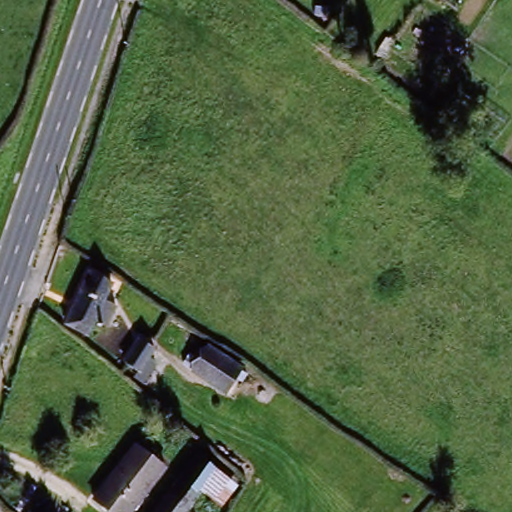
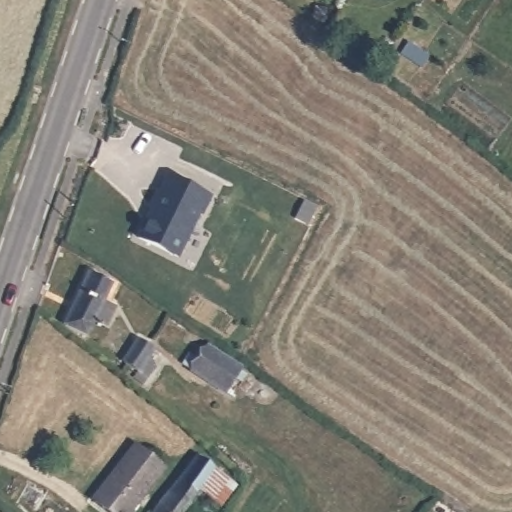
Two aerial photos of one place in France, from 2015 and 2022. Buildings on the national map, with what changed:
new [(202,195),(194,210),(192,209),(173,254),(133,237),(145,208),(143,207),(150,190),(153,191),(160,174),(202,195)]
unchanged [(105,279),(89,333),(69,326),(85,272),(105,279)]
unchanged [(158,356),(139,379),(125,366),(144,344),(158,356)]
unchanged [(190,372),(208,348),(243,373),(225,398),(190,372)]
unchanged [(106,512),(95,503),(137,449),(165,470),(133,512),(106,512)]
unchanged [(226,480),(214,497),(204,490),(187,512),(149,512),(191,454),(226,480)]

